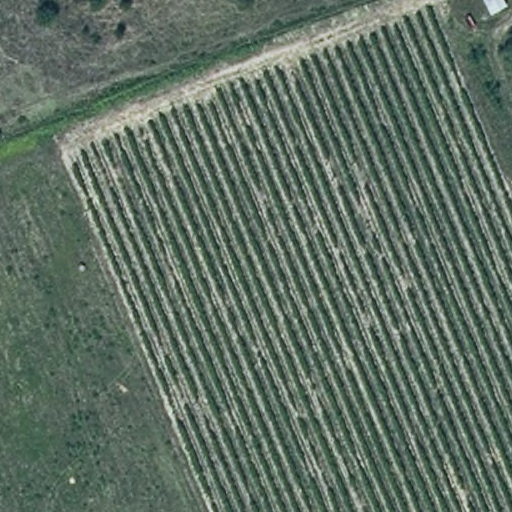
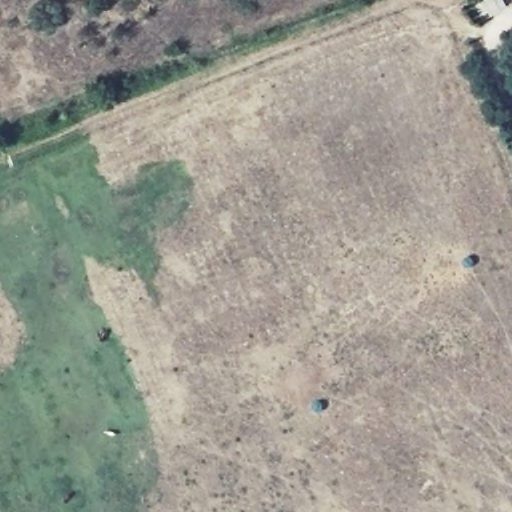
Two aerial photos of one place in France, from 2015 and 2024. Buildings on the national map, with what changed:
unchanged [(502,0),(505,5),(488,19),(479,0),(502,0)]

